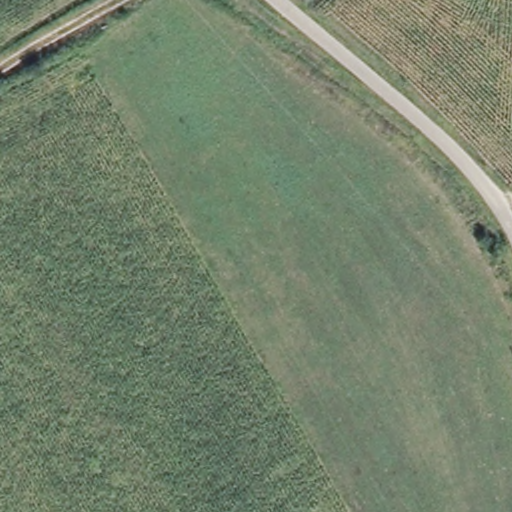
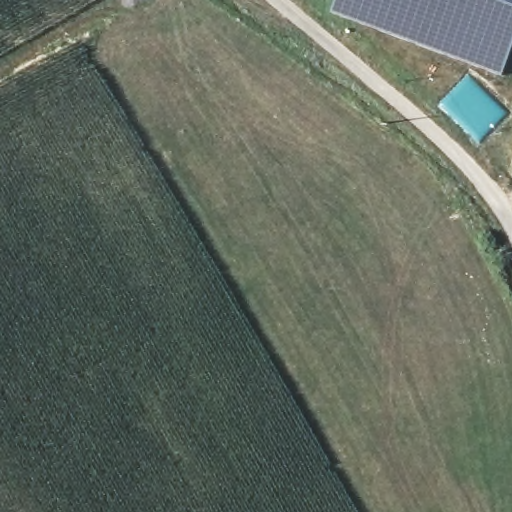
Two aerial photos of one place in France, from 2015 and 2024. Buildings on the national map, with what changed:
new [(503,77),(329,11),(334,0),(512,0),(512,52),(503,77)]

